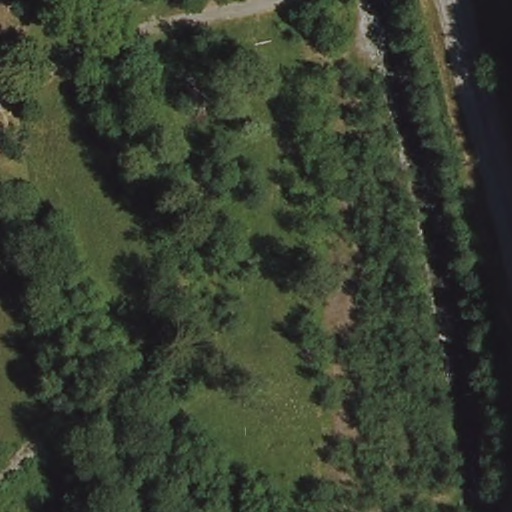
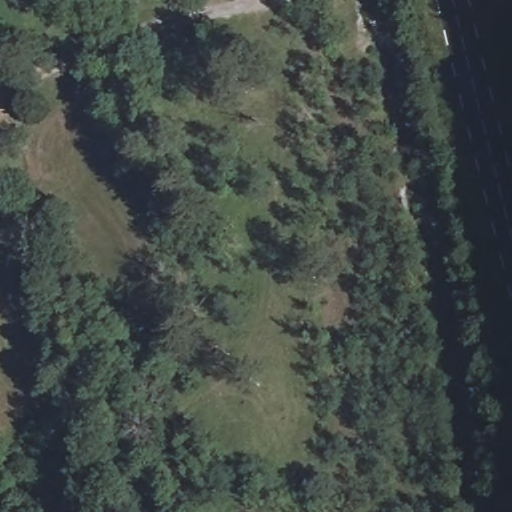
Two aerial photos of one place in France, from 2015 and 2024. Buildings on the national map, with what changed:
[]

